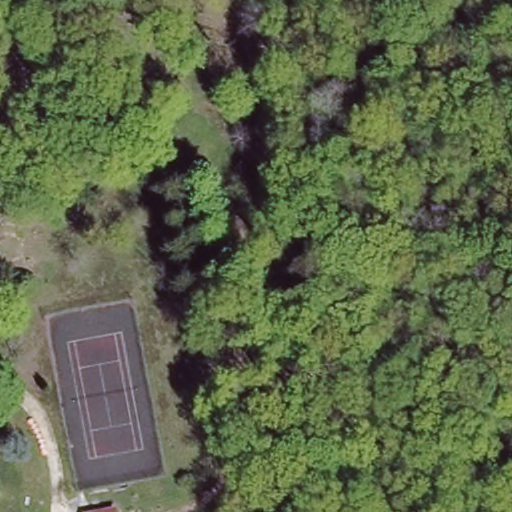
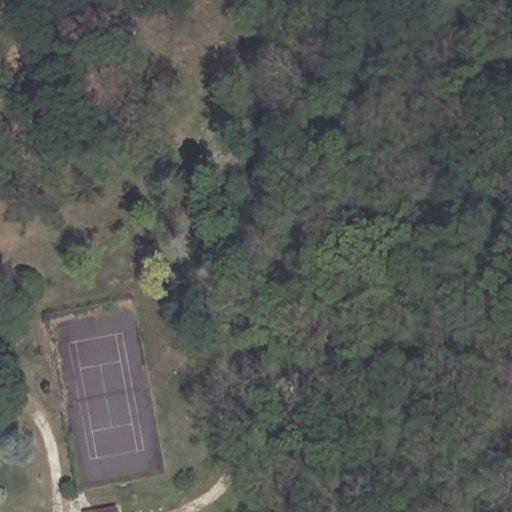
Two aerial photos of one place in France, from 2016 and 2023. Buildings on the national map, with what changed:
unchanged [(118,505),(120,512),(81,512),(81,511),(118,505)]

